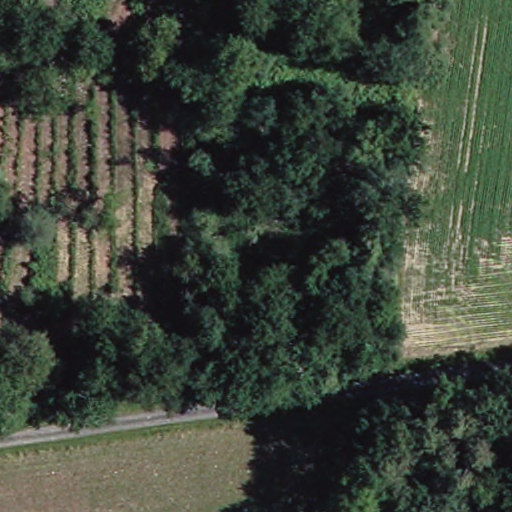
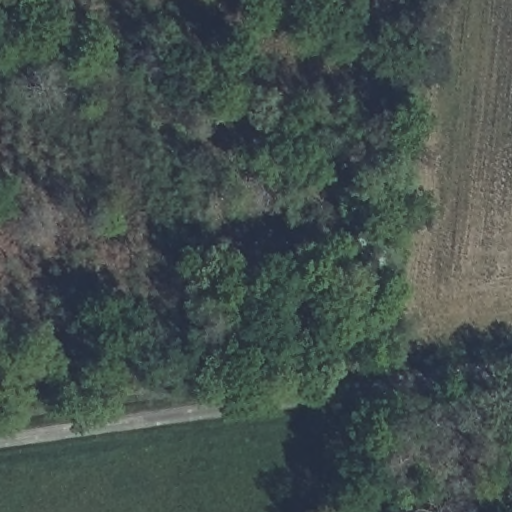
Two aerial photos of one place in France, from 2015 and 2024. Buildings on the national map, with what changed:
[]

